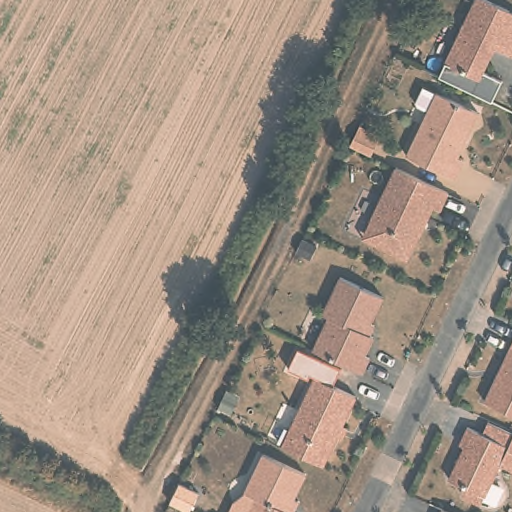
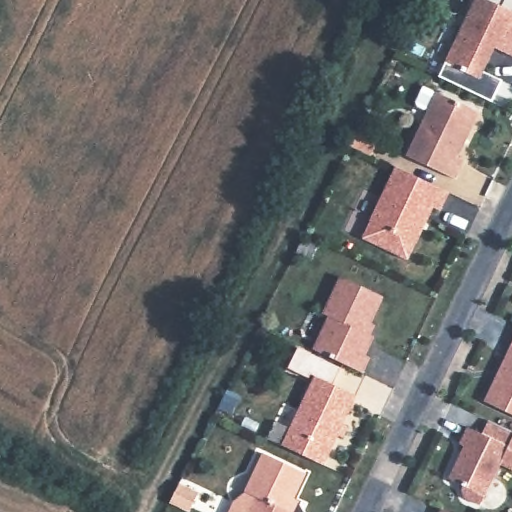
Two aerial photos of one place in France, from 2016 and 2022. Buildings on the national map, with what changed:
unchanged [(475,0),(489,0),(512,11),(512,55),(494,46),(479,78),(446,62),(475,0)]
unchanged [(408,154),(438,91),(479,111),(458,155),(465,158),(456,178),(408,154)]
unchanged [(371,220),(397,165),(449,191),(441,209),(433,205),(408,258),(379,244),(363,237),(371,220)]
unchanged [(330,314),(324,312),(342,274),(384,294),(367,330),(374,334),(366,353),(371,355),(364,371),(314,347),(330,314)]
unchanged [(512,345),(512,412),(486,400),(512,345)]
unchanged [(279,448),(312,379),(353,398),(319,467),(279,448)]
unchanged [(239,396),(233,409),(220,402),(227,390),(239,396)]
unchanged [(464,502),(460,499),(458,493),(459,489),(445,482),(461,449),(455,447),(464,430),(479,437),(485,424),(511,436),(504,449),(476,508),(464,502)]
unchanged [(258,494),(247,489),(265,450),(307,470),(289,508),(297,511),(296,512),(249,512),(258,494)]
unchanged [(455,512),(440,512),(443,507),(455,512)]

